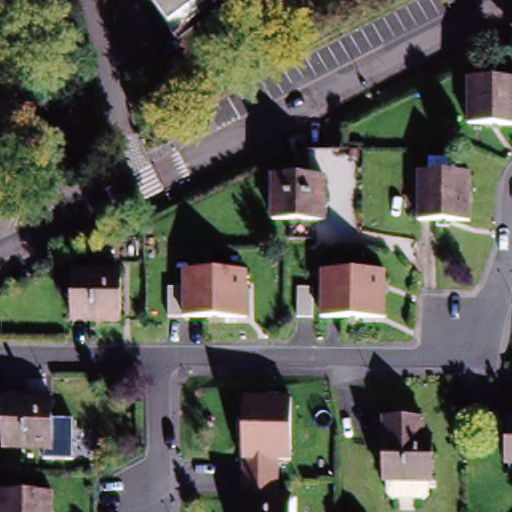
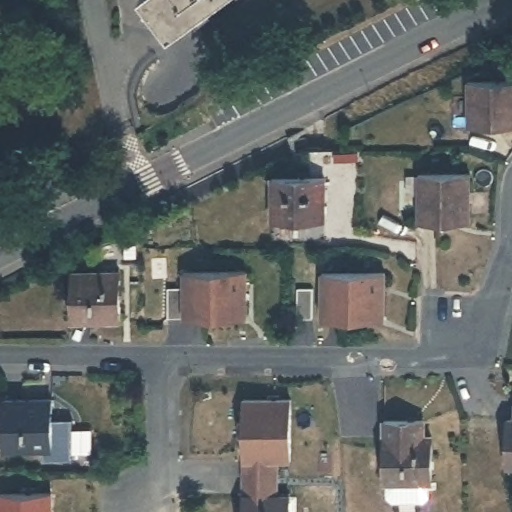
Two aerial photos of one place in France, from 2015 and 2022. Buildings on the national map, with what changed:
unchanged [(171,34),(147,0),(217,0),(171,34)]
unchanged [(469,81),(512,82),(512,127),(468,126),(469,81)]
unchanged [(272,227),(272,181),(303,182),(304,153),(325,154),(323,182),(322,227),(272,227)]
unchanged [(468,222),(417,221),(417,176),(469,177),(468,222)]
unchanged [(125,322),(76,321),(77,272),(124,272),(125,322)]
unchanged [(249,320),(189,320),(190,272),(250,272),(249,320)]
unchanged [(382,320),(322,320),(322,272),(383,273),(382,320)]
unchanged [(5,451),(4,399),(50,398),(50,451),(5,451)]
unchanged [(242,477),(243,400),(290,401),(289,461),(276,460),(276,478),(242,477)]
unchanged [(388,420),(427,420),(427,437),(436,438),(436,483),(432,483),(432,496),(427,501),(396,500),(391,495),(391,483),(388,483),(388,420)]
unchanged [(507,420),(512,421),(512,466),(506,466),(507,420)]
unchanged [(289,497),(289,512),(242,512),(242,477),(276,478),(277,496),(289,497)]
unchanged [(4,512),(4,493),(56,494),(56,512),(4,512)]

